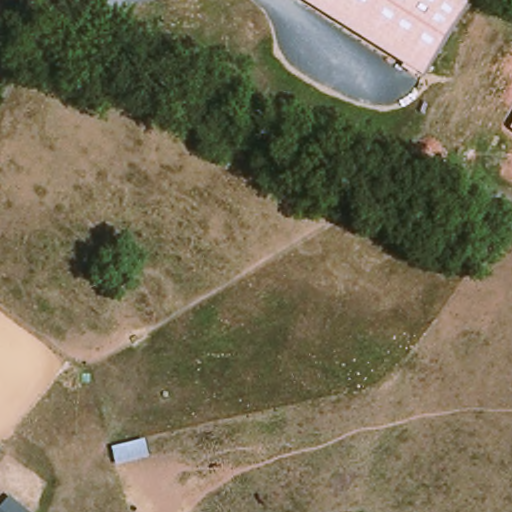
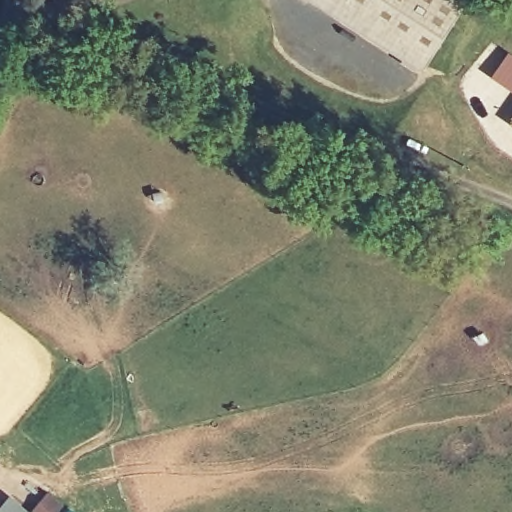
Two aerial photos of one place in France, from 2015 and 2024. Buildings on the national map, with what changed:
unchanged [(320,0),(465,0),(424,65),(320,0)]
new [(509,49),(512,51),(512,90),(492,76),(509,49)]
unchanged [(512,120),(512,124),(510,123),(512,120)]
unchanged [(10,512),(0,512),(0,503),(10,512)]

